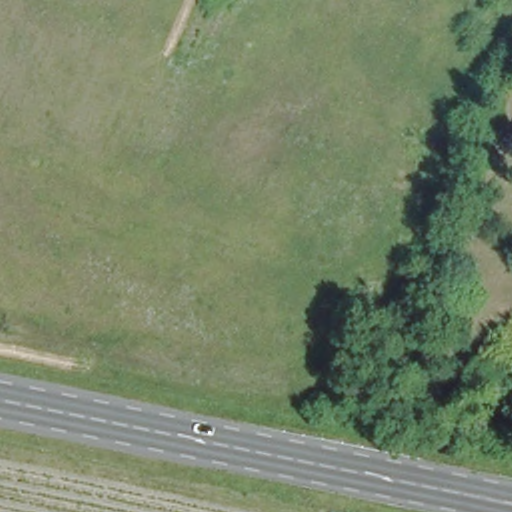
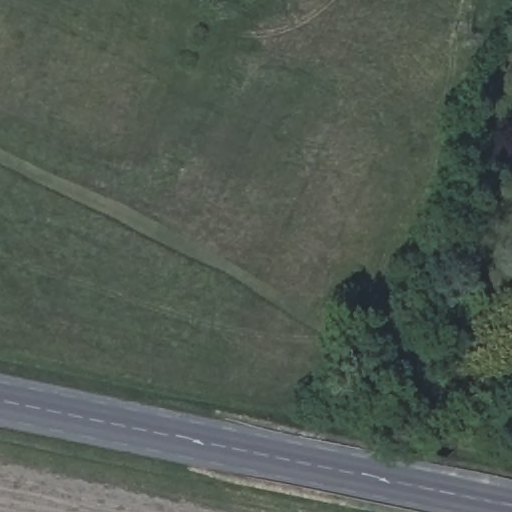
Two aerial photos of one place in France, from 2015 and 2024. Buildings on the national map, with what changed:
[]

